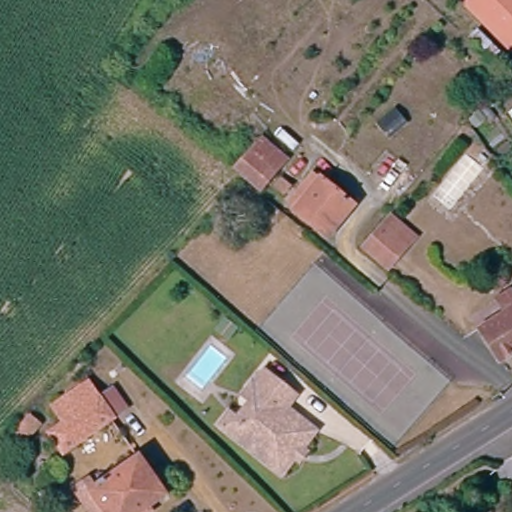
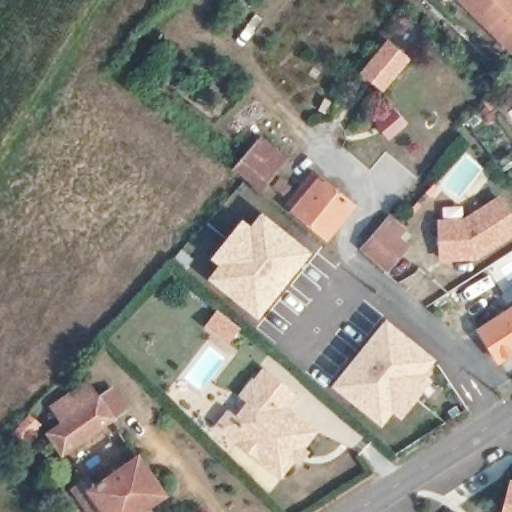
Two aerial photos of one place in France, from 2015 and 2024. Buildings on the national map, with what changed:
unchanged [(451,3),(455,0),(512,0),(512,53),(507,58),(451,3)]
new [(388,38),(413,58),(385,93),(360,72),(388,38)]
unchanged [(501,74),(512,63),(512,84),(501,74)]
unchanged [(255,198),(230,176),(235,168),(249,152),(265,133),(295,150),(255,198)]
unchanged [(318,244),(290,219),(280,210),(306,178),(315,186),(346,212),(318,244)]
unchanged [(275,204),(265,197),(275,185),(285,192),(275,204)]
new [(480,259),(439,260),(438,219),(466,218),(501,194),(512,211),(512,236),(480,259)]
new [(252,226),(262,212),(312,252),(260,320),(208,279),(220,265),(211,259),(243,219),(252,226)]
unchanged [(403,241),(381,266),(362,249),(384,224),(403,241)]
unchanged [(498,365),(477,332),(502,315),(494,302),(507,294),(512,291),(512,356),(498,365)]
new [(437,358),(426,373),(433,379),(403,419),(393,413),(382,426),(331,386),(386,318),(437,358)]
demolished [(105,372),(87,390),(75,378),(93,361),(105,372)]
unchanged [(302,466),(296,461),(274,485),(226,442),(215,431),(229,415),(235,420),(245,408),(236,400),(250,384),(262,370),(297,397),(285,412),(312,434),(300,448),(310,457),(302,466)]
unchanged [(118,421),(57,465),(44,446),(58,436),(45,419),(80,395),(92,411),(105,402),(118,421)]
unchanged [(35,425),(21,439),(13,431),(27,417),(35,425)]
unchanged [(95,478),(100,485),(147,451),(175,490),(144,512),(96,512),(80,488),(95,478)]
new [(502,512),(510,479),(512,479),(512,512),(502,512)]

